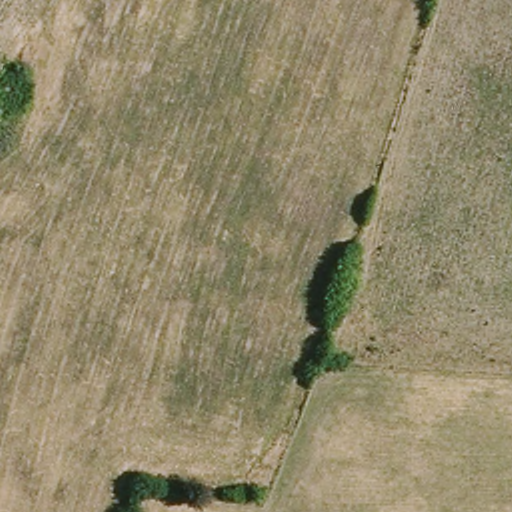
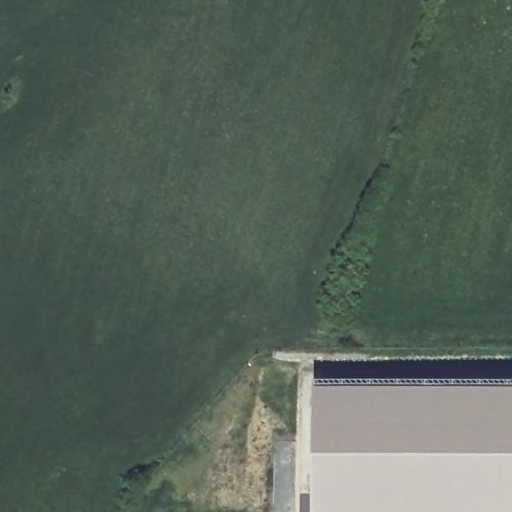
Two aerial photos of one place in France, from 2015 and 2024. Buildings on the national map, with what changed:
new [(318,381),(512,384),(512,512),(317,512),(318,381)]

